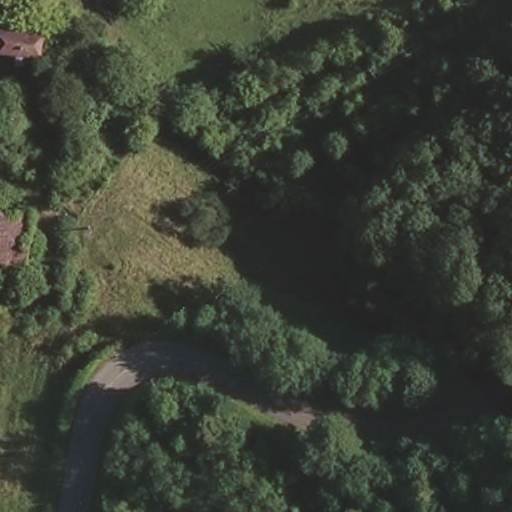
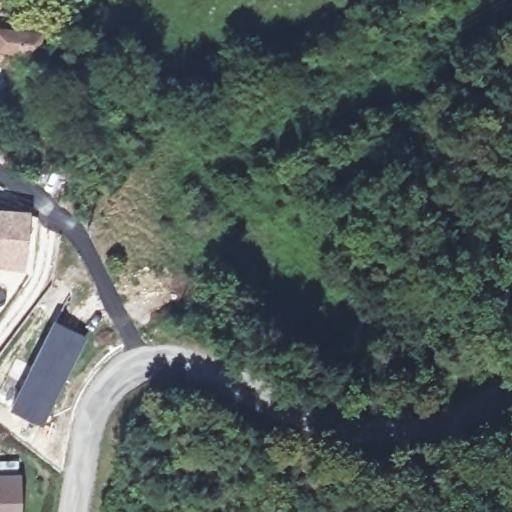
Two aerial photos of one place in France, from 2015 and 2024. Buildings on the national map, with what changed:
unchanged [(9,43),(11,22),(40,25),(40,35),(38,44),(9,43)]
unchanged [(0,123),(0,96),(4,96),(0,123)]
unchanged [(27,266),(0,263),(0,211),(30,213),(27,266)]
new [(8,409),(52,319),(86,336),(44,424),(8,409)]
new [(21,512),(0,512),(0,474),(22,473),(21,512)]

